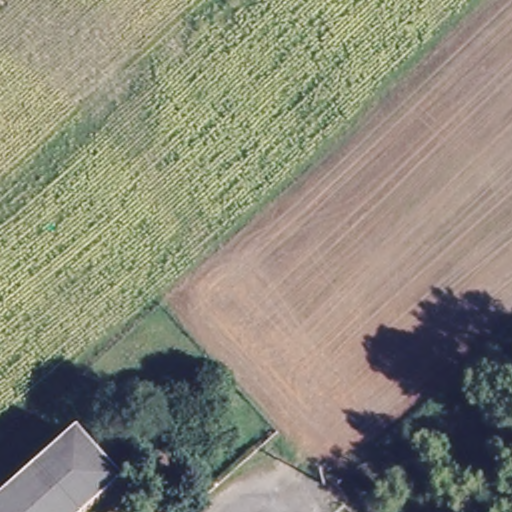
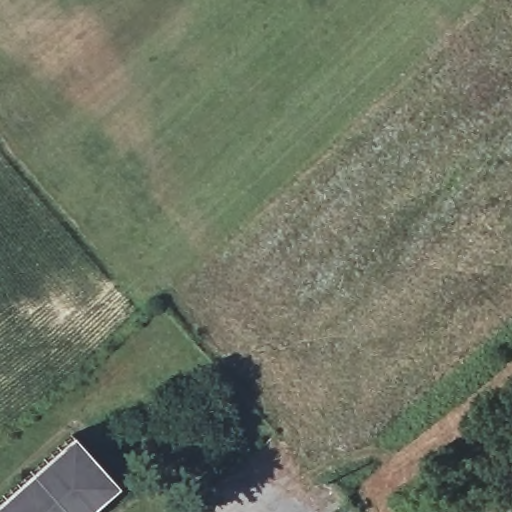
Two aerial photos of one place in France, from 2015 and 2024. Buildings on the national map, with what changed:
unchanged [(113,490),(88,512),(0,512),(0,501),(69,440),(113,490)]

